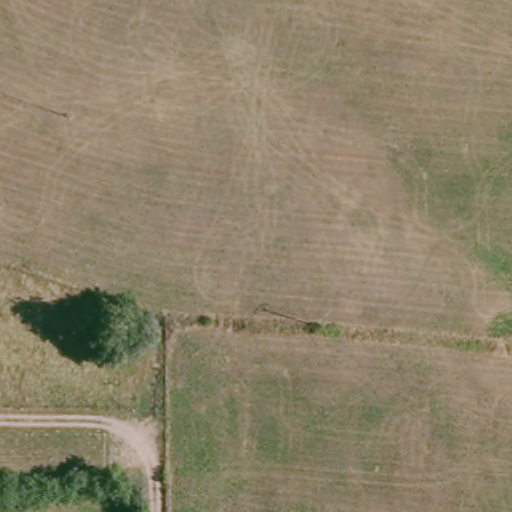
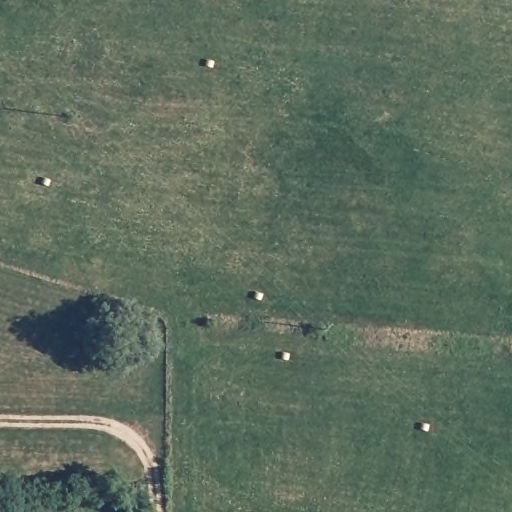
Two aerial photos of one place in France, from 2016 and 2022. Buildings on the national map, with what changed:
[]

